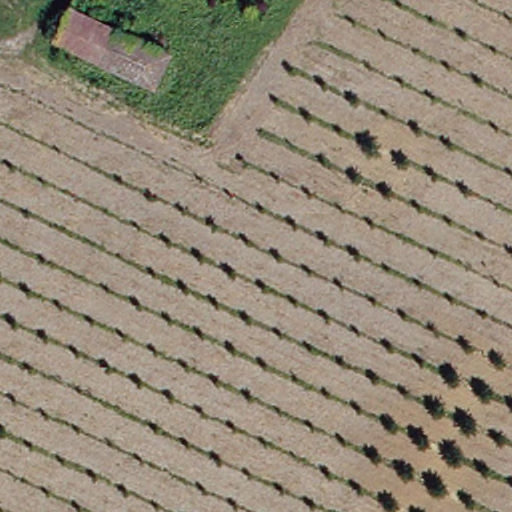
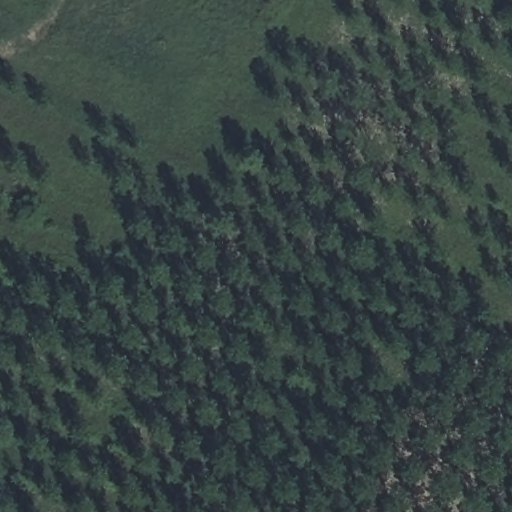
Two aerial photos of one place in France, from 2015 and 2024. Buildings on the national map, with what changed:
demolished [(160,49),(164,51),(149,85),(49,40),(66,5),(160,49)]

